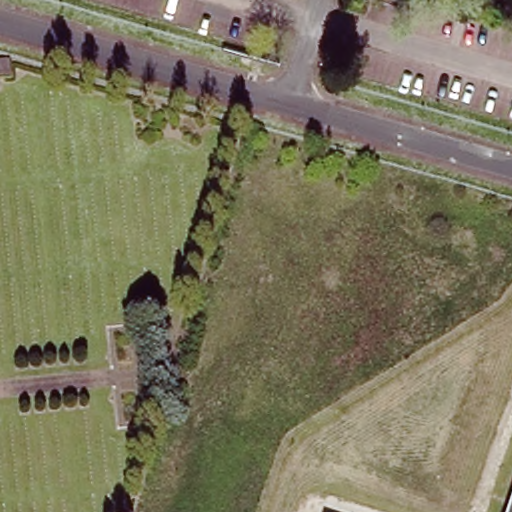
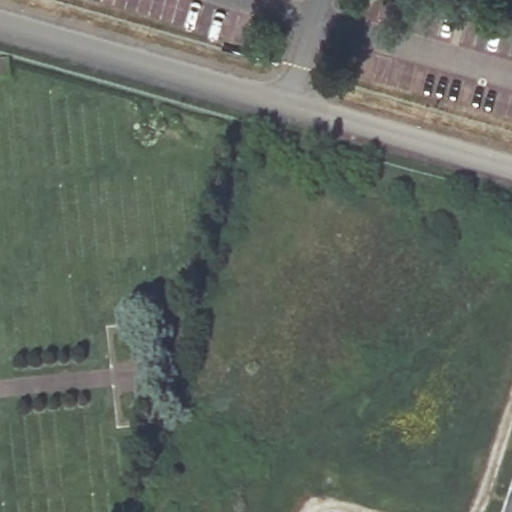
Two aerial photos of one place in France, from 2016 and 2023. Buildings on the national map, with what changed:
unchanged [(512,500),(512,512),(508,512),(512,500)]

